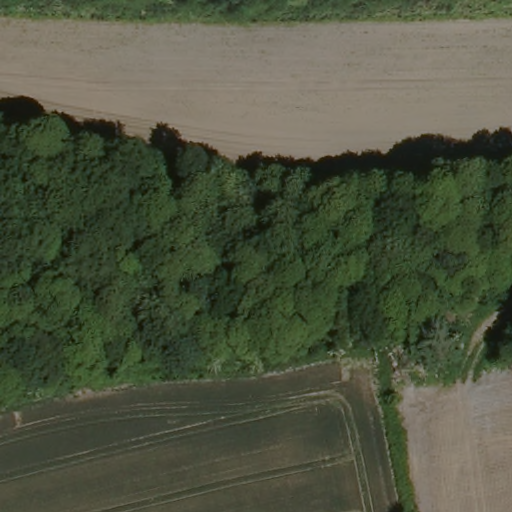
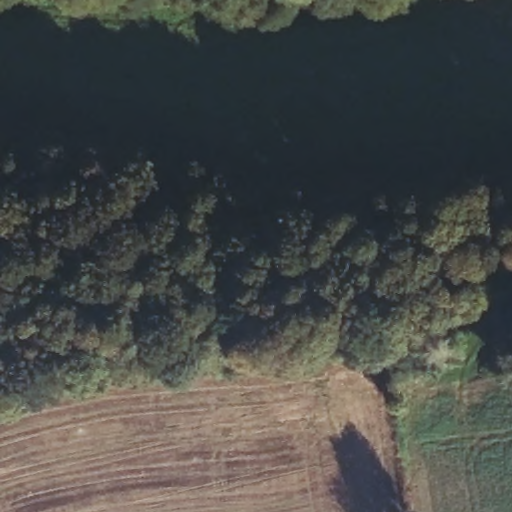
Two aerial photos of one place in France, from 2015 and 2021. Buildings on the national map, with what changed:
[]

